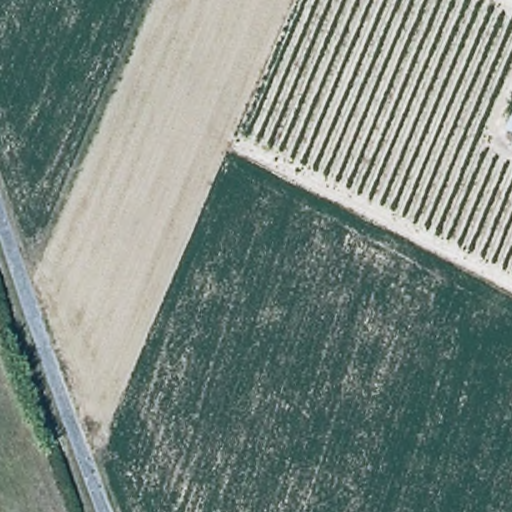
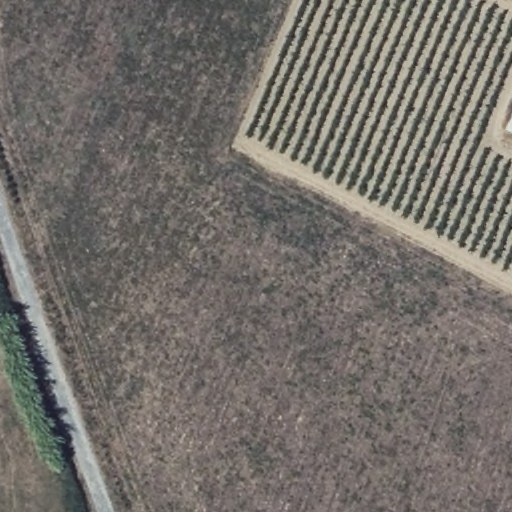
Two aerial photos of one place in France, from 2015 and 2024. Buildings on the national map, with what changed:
unchanged [(505,125),(512,112),(512,129),(505,125)]

